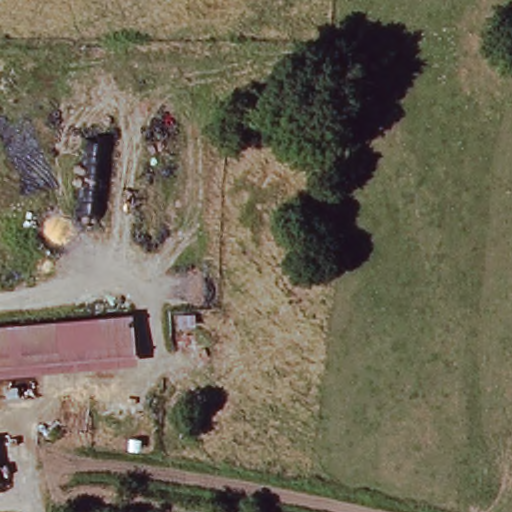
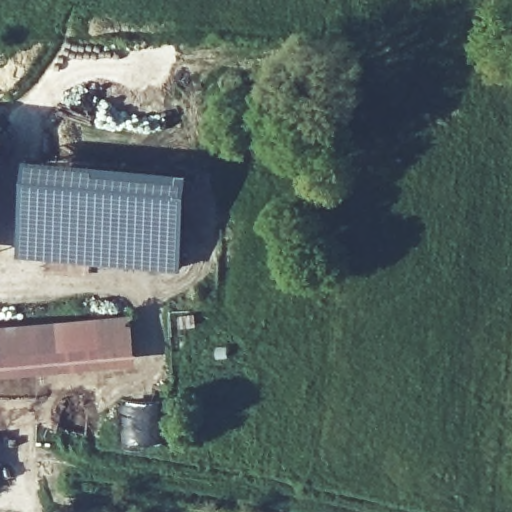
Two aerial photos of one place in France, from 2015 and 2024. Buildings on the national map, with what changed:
new [(0,187),(0,125),(5,125),(0,187)]
new [(18,255),(25,155),(191,170),(182,268),(18,255)]
unchanged [(0,322),(135,305),(144,353),(0,374),(0,322)]

